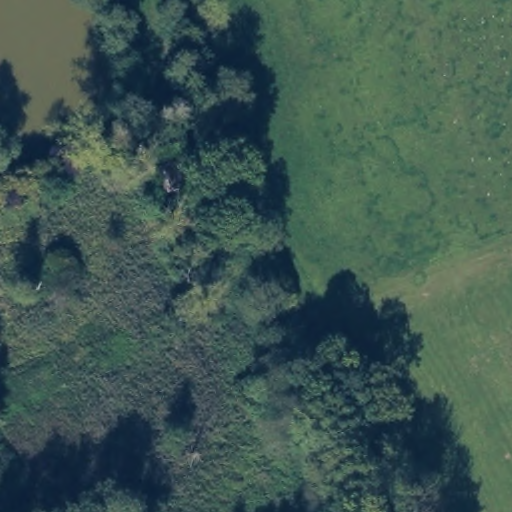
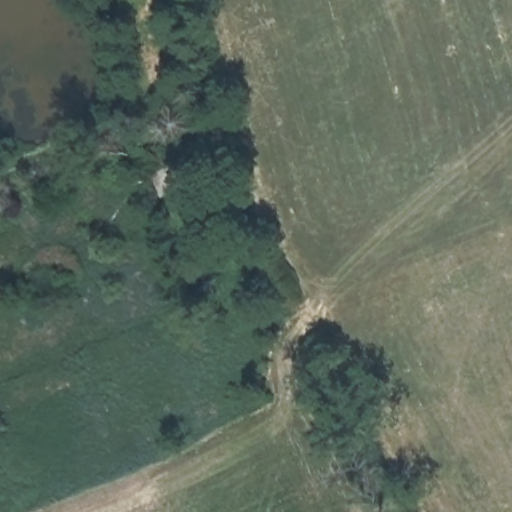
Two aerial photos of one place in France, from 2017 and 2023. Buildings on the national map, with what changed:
unchanged [(180,190),(153,193),(147,170),(174,164),(180,190)]

